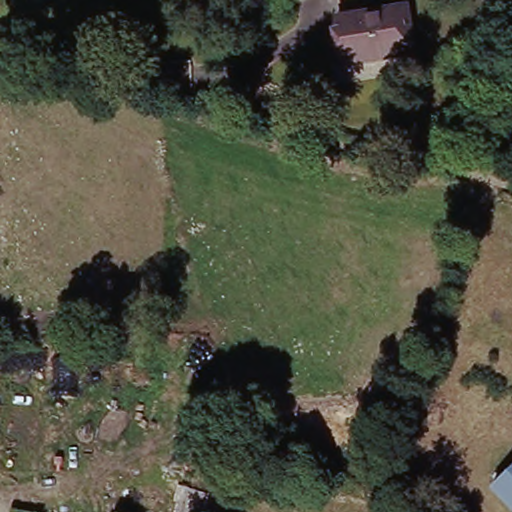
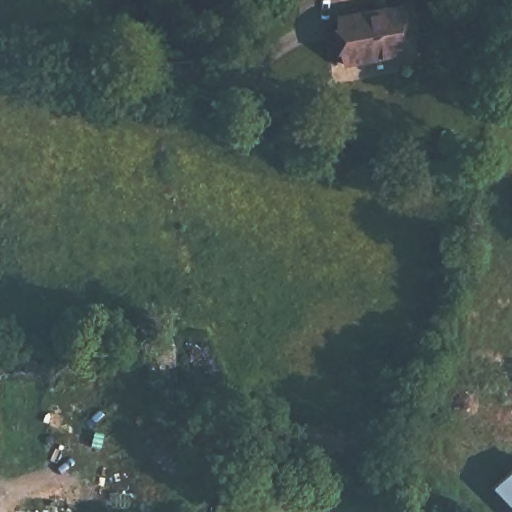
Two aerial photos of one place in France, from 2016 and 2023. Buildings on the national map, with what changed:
unchanged [(398,3),(409,48),(341,62),(331,19),(398,3)]
unchanged [(512,512),(508,512),(492,495),(512,476),(512,512)]

